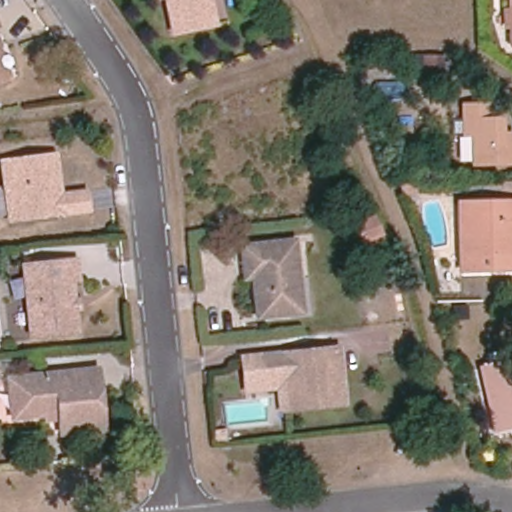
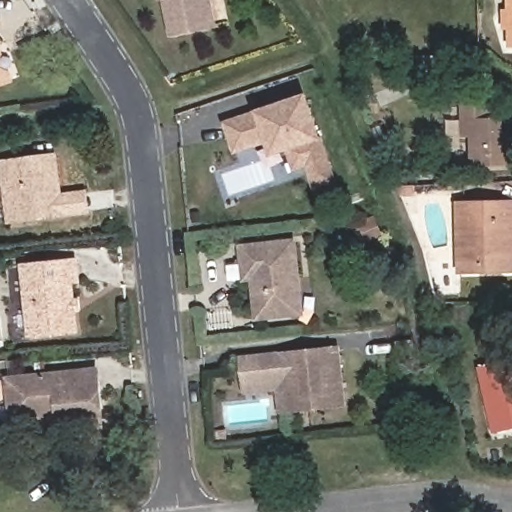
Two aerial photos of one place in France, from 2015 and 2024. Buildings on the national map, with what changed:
unchanged [(173,35),(166,0),(210,0),(216,27),(173,35)]
unchanged [(511,46),(510,29),(510,12),(510,0),(512,0),(512,46),(511,46)]
unchanged [(0,58),(9,83),(0,86),(0,58)]
new [(314,190),(307,168),(291,173),(285,154),(272,158),(268,144),(232,154),(222,122),(258,110),(309,94),(325,140),(339,182),(314,190)]
unchanged [(491,105),(492,120),(502,120),(503,134),(512,134),(512,165),(473,166),(472,136),(463,136),(463,121),(462,106),(491,105)]
unchanged [(89,212),(63,215),(17,220),(10,222),(3,164),(10,163),(56,157),(61,197),(86,194),(89,212)]
unchanged [(411,194),(402,194),(398,187),(411,186),(411,194)]
unchanged [(484,272),(461,272),(459,204),(511,204),(511,219),(512,219),(512,271),(484,272)]
unchanged [(366,243),(358,225),(375,217),(383,234),(366,243)]
unchanged [(292,315),(258,319),(253,279),(245,279),(244,264),(241,248),(295,242),(301,296),(302,314),(292,315)]
unchanged [(77,332),(31,337),(24,267),(76,262),(79,282),(73,283),(77,332)]
unchanged [(348,407),(281,413),(279,392),(245,394),(241,358),(343,345),(348,407)]
unchanged [(495,431),(481,369),(512,363),(512,427),(495,431)]
unchanged [(104,429),(62,434),(59,410),(51,411),(47,415),(25,418),(22,392),(11,393),(9,379),(98,369),(104,429)]

